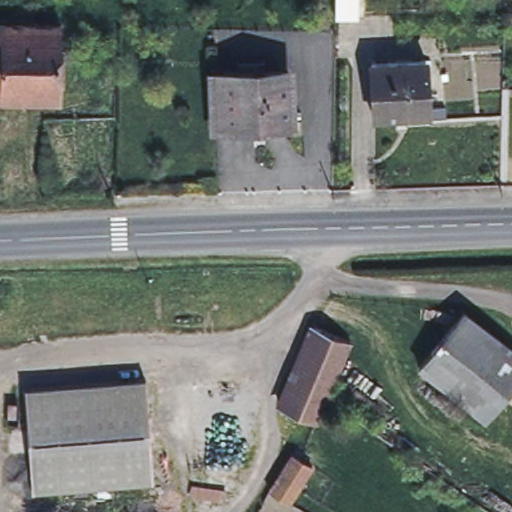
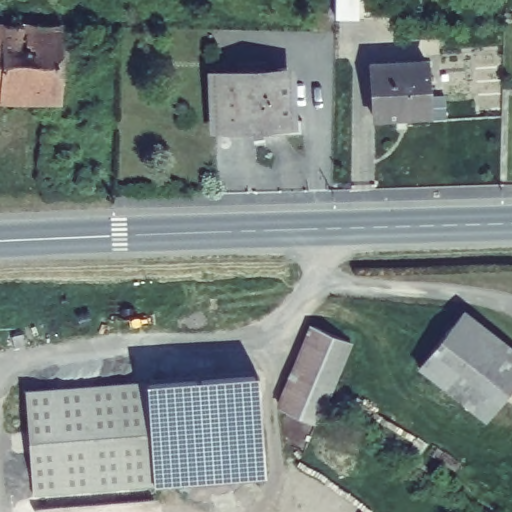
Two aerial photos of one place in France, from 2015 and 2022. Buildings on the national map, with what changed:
unchanged [(349,20),(334,20),(334,0),(357,0),(357,20),(349,20)]
unchanged [(71,63),(70,75),(61,74),(61,112),(0,111),(0,36),(60,37),(60,62),(71,63)]
unchanged [(425,62),(427,117),(373,121),(370,65),(425,62)]
unchanged [(286,75),(287,121),(300,121),(300,136),(254,137),(253,126),(214,127),(212,77),(286,75)]
unchanged [(512,344),(512,387),(488,417),(422,364),(467,308),(512,344)]
unchanged [(327,411),(321,409),(314,425),(280,411),(280,405),(311,327),(349,343),(326,398),(331,401),(327,411)]
new [(266,477),(152,487),(144,383),(147,381),(257,373),(266,477)]
unchanged [(144,383),(152,487),(33,496),(25,392),(144,383)]
demolished [(310,469),(287,506),(267,494),(290,457),(310,469)]

